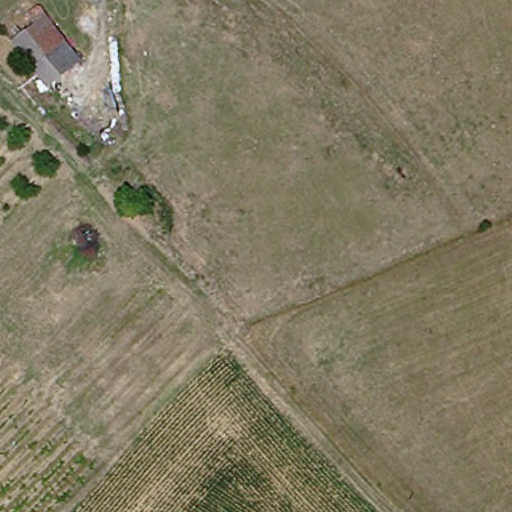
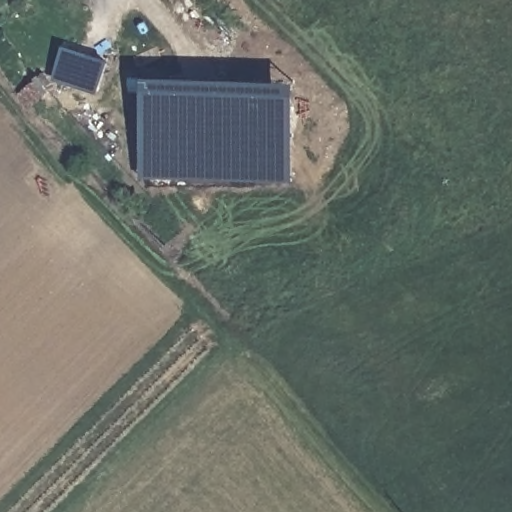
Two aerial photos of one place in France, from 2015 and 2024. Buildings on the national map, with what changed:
demolished [(36,29),(30,19),(43,11),(83,65),(49,93),(13,50),(36,29)]
new [(63,44),(109,60),(96,93),(54,79),(63,44)]
new [(20,93),(38,73),(52,87),(34,108),(20,93)]
new [(141,76),(294,80),(293,181),(140,177),(141,76)]

